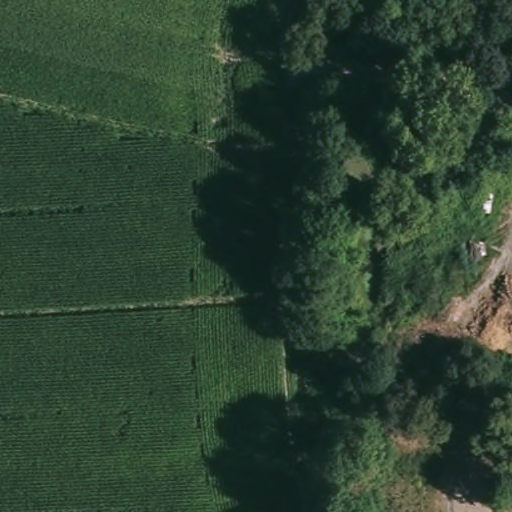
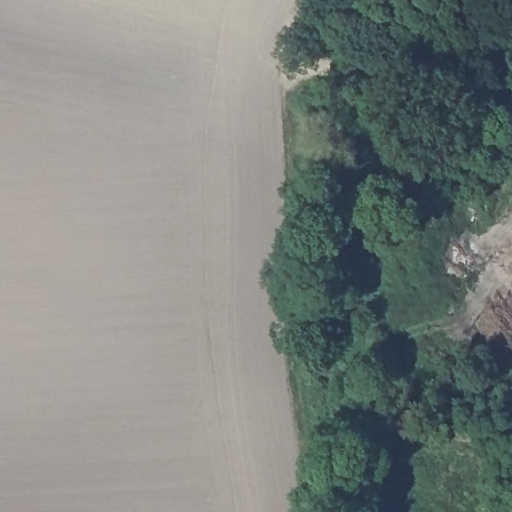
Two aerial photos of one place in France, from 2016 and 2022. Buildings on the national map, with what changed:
unchanged [(504,131),(499,161),(491,161),(485,187),(452,181),(463,124),(504,131)]

